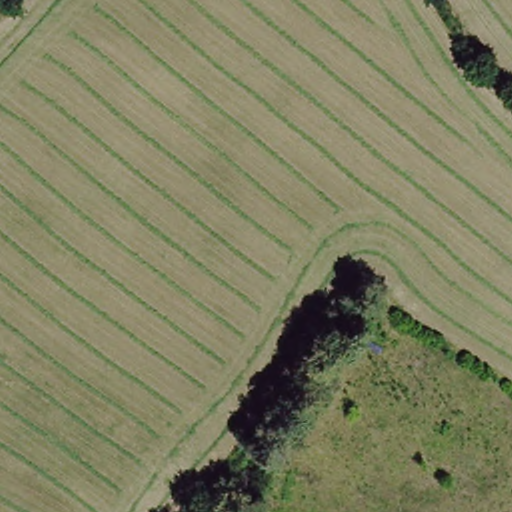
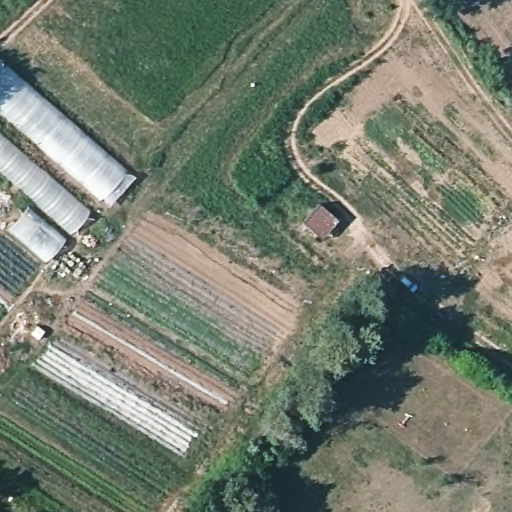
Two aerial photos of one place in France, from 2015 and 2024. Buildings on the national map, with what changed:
new [(125,171),(100,199),(0,110),(0,71),(6,65),(125,171)]
new [(90,212),(71,235),(0,173),(0,133),(90,212)]

